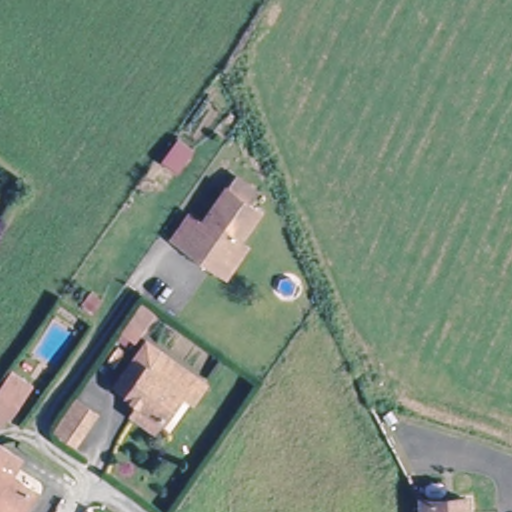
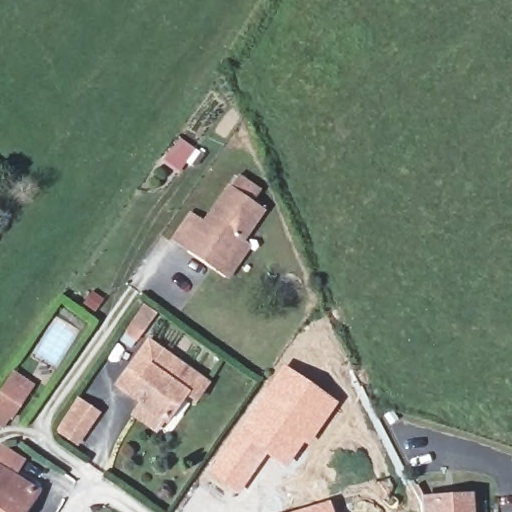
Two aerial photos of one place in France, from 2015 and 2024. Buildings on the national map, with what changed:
unchanged [(241,243),(252,250),(233,278),(161,229),(182,202),(207,219),(229,187),(236,176),(258,190),(251,201),(263,210),(241,243)]
unchanged [(141,403),(150,390),(131,378),(151,349),(196,382),(177,409),(168,422),(141,403)]
new [(283,364),(338,402),(307,445),(304,443),(286,467),(266,454),(238,494),(205,472),(283,364)]
unchanged [(0,390),(14,370),(30,381),(0,426),(0,390)]
unchanged [(75,445),(54,431),(74,402),(95,417),(75,445)]
unchanged [(0,449),(0,435),(7,439),(0,449)]
unchanged [(0,512),(0,463),(36,486),(20,512),(0,512)]
new [(333,512),(290,512),(329,499),(333,512)]
unchanged [(461,512),(430,512),(458,503),(461,512)]

